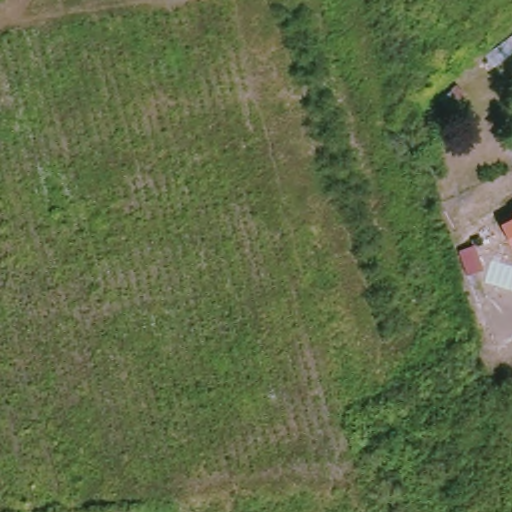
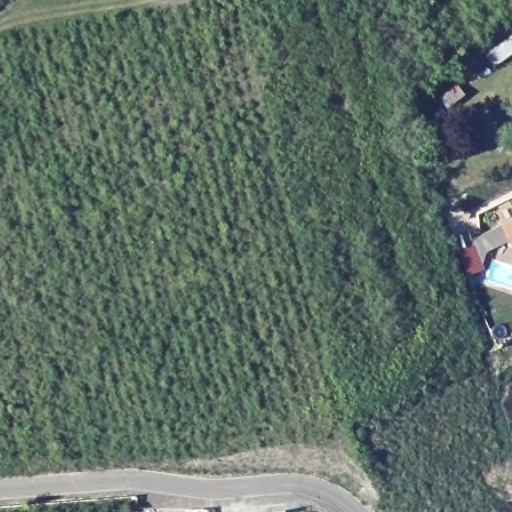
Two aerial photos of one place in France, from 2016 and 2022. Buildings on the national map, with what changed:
unchanged [(504,227),(512,223),(512,244),(504,227)]

